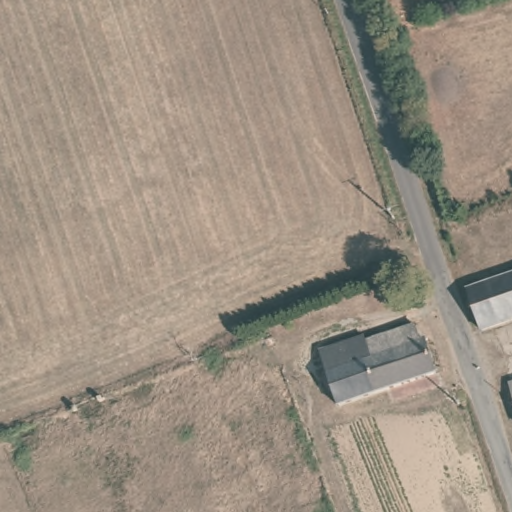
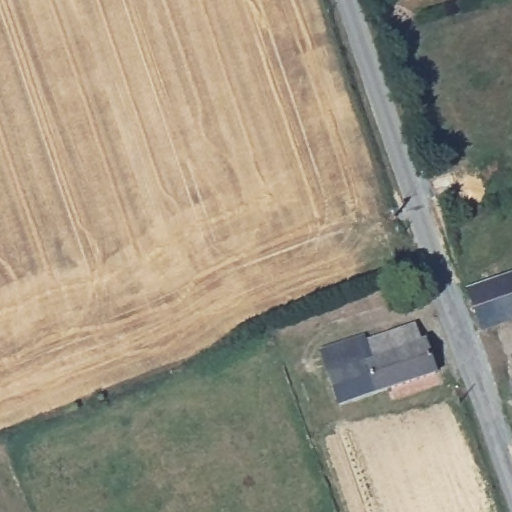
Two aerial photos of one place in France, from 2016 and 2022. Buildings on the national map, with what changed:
unchanged [(484,325),(471,285),(512,273),(512,317),(484,325)]
unchanged [(367,359),(362,338),(413,322),(419,338),(425,337),(434,371),(337,402),(327,371),(367,359)]
unchanged [(505,385),(512,383),(512,408),(505,385)]

